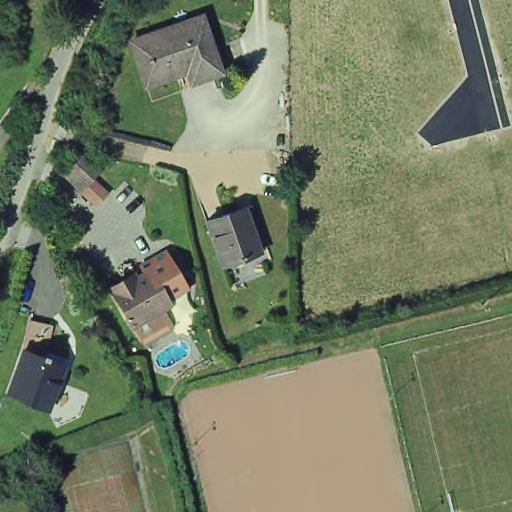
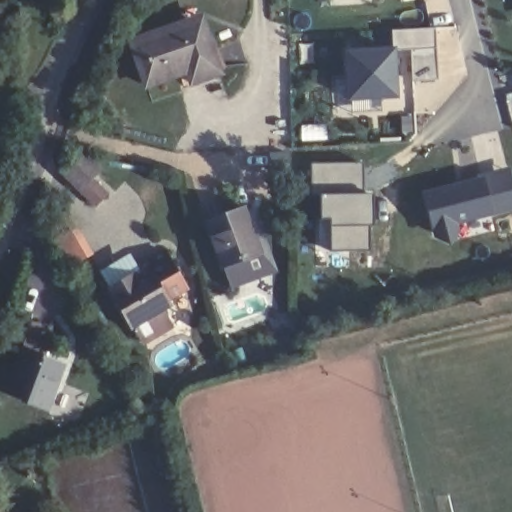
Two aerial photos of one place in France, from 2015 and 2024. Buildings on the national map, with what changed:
unchanged [(195,10),(215,68),(185,77),(182,64),(140,78),(125,32),(195,10)]
new [(395,31),(433,29),(434,81),(412,83),(410,49),(395,51),(395,31)]
new [(395,51),(397,99),(346,104),(345,51),(395,51)]
demolished [(250,159),(255,159),(281,157),(282,172),(253,175),(252,175),(250,159)]
new [(310,162),(362,161),(362,192),(319,193),(310,193),(310,162)]
new [(459,230),(450,245),(434,238),(422,192),(483,176),(482,172),(510,166),(512,174),(512,211),(493,216),(457,225),(459,230)]
unchanged [(87,177),(105,195),(95,205),(77,188),(87,177)]
new [(319,193),(362,192),(372,192),(368,249),(330,250),(327,219),(319,219),(319,193)]
unchanged [(222,267),(206,223),(243,209),(247,220),(250,230),(260,254),(246,259),(222,267)]
new [(260,221),(278,273),(230,290),(222,267),(246,259),(260,254),(250,230),(249,226),(260,221)]
new [(145,279),(137,265),(165,250),(188,289),(159,305),(145,279)]
unchanged [(139,350),(130,333),(107,295),(123,286),(132,281),(133,285),(145,279),(164,315),(160,317),(168,333),(139,350)]
unchanged [(63,368),(52,394),(50,393),(42,410),(23,403),(25,400),(7,393),(26,346),(48,355),(45,361),(63,368)]

